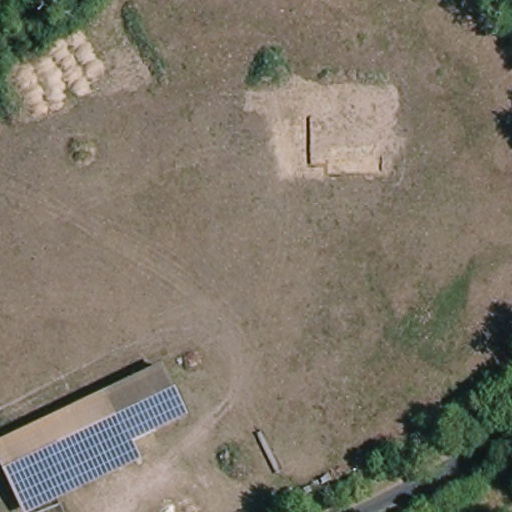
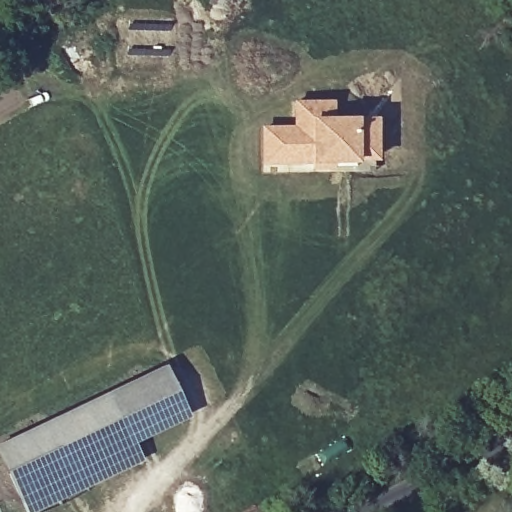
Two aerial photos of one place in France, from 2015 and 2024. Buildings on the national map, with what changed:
new [(288,161),(288,128),(295,128),(295,103),(330,103),(330,120),(373,120),(375,158),(374,171),(329,171),(329,161),(288,161)]
unchanged [(193,418),(139,445),(144,459),(33,512),(23,512),(0,463),(0,442),(166,364),(193,418)]

